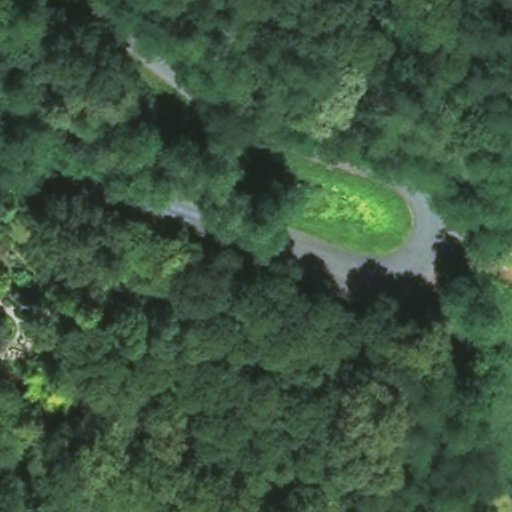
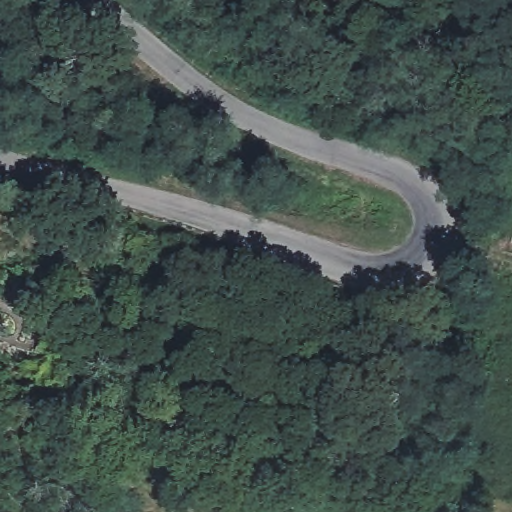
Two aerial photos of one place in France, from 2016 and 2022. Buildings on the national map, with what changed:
[]

